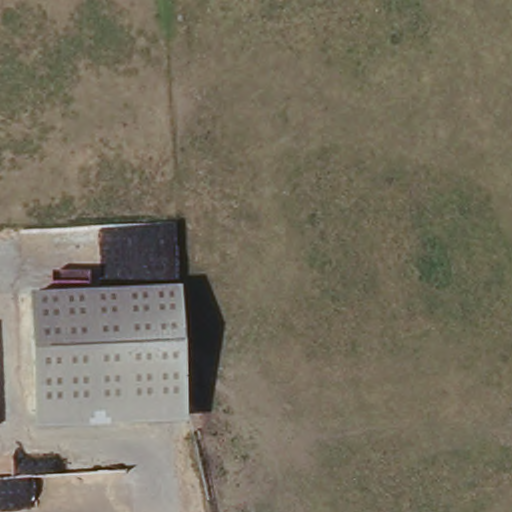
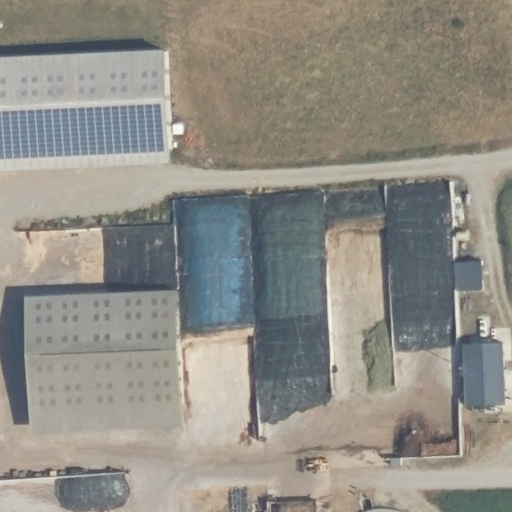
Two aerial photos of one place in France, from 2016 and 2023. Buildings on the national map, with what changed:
new [(184,48),(190,161),(0,170),(0,51),(184,48)]
new [(483,265),(483,292),(457,293),(457,265),(483,265)]
unchanged [(38,308),(186,300),(194,413),(45,421),(38,308)]
new [(507,346),(508,411),(467,412),(465,348),(507,346)]

